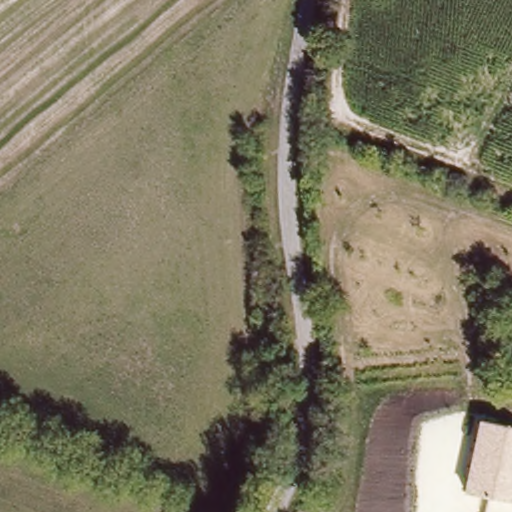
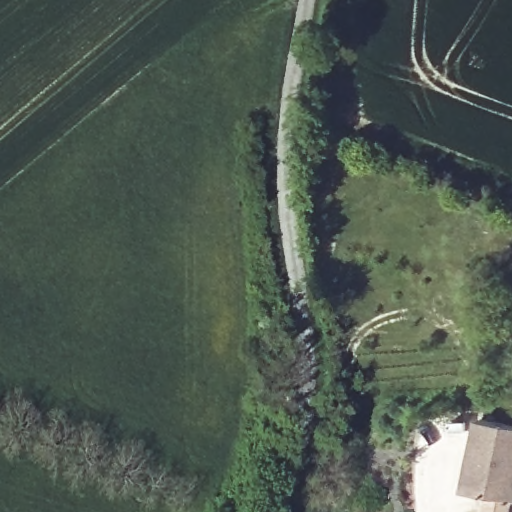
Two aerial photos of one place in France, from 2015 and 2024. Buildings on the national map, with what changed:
unchanged [(512,427),(512,503),(463,493),(479,420),(512,427)]

